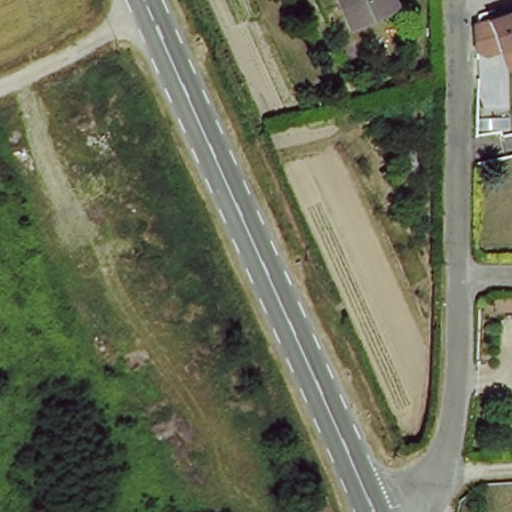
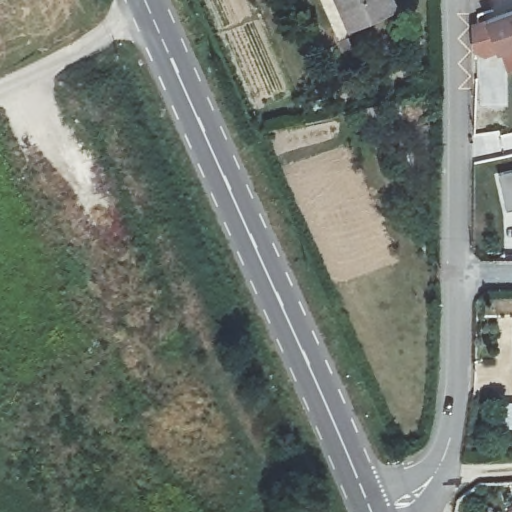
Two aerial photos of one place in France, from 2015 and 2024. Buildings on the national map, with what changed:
unchanged [(350,27),(338,0),(395,0),(397,5),(350,27)]
unchanged [(512,22),(512,56),(487,64),(488,31),(512,22)]
new [(512,209),(505,210),(496,172),(512,169),(512,209)]
unchanged [(340,512),(313,512),(310,503),(333,493),(340,512)]

